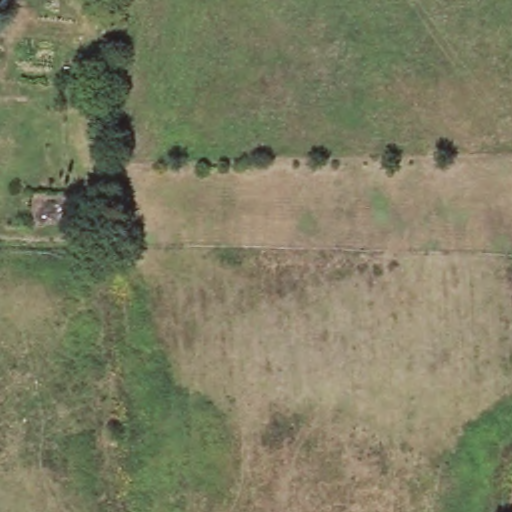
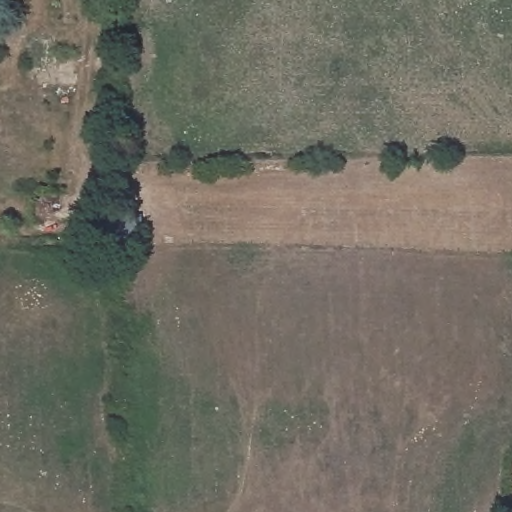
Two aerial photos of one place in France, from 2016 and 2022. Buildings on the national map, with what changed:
unchanged [(46,88),(46,109),(0,106),(0,86),(46,88)]

